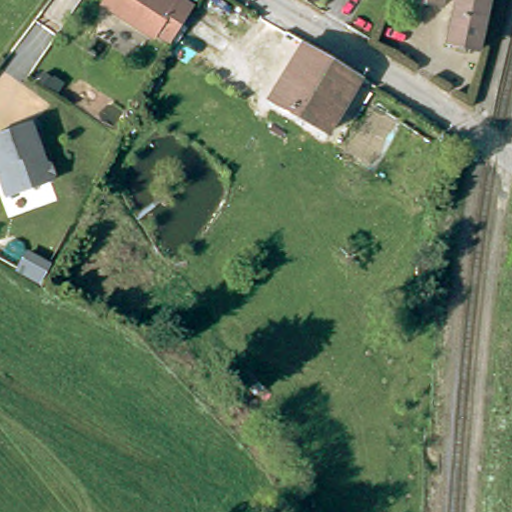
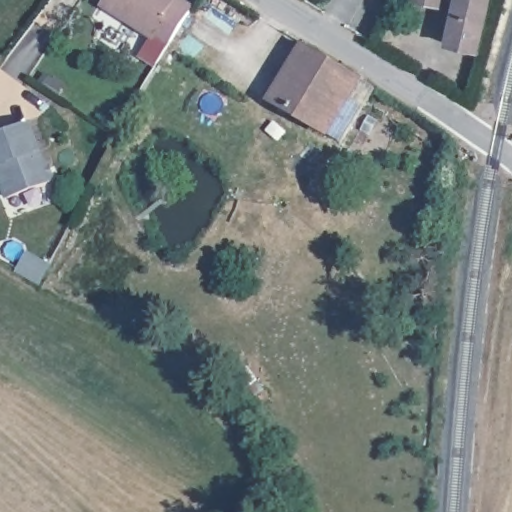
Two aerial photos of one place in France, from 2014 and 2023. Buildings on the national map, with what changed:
unchanged [(193,2),(172,38),(156,28),(153,32),(100,1),(101,0),(189,0),(192,1),(193,2)]
unchanged [(442,5),(418,0),(443,0),(442,5)]
unchanged [(456,2),(456,0),(484,0),(483,7),(484,7),(479,39),(448,32),(454,2),(456,2)]
unchanged [(359,76),(327,132),(271,99),(304,43),(359,76)]
unchanged [(25,121),(35,151),(29,154),(34,163),(40,161),(46,165),(48,173),(43,180),(3,195),(0,188),(0,130),(25,121)]

